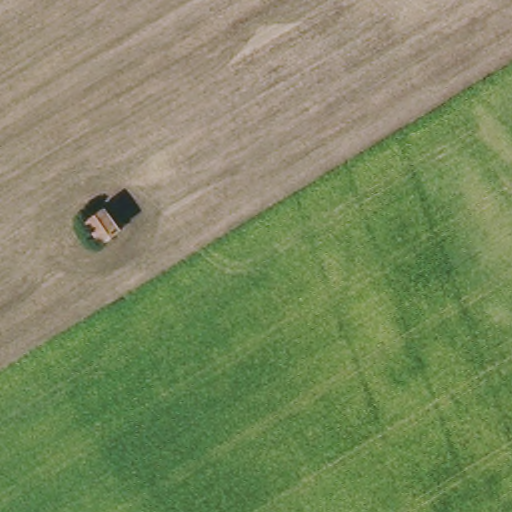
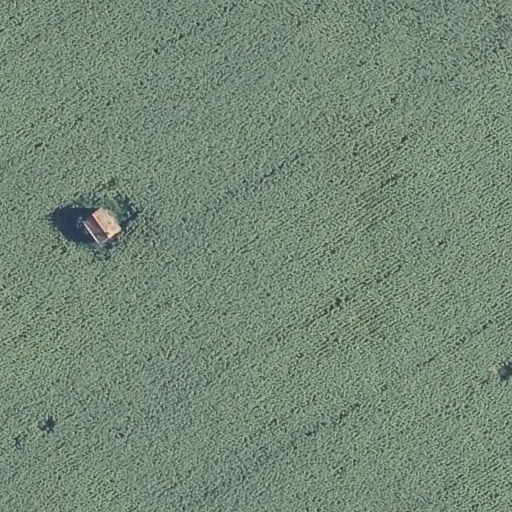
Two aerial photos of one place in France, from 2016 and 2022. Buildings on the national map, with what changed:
unchanged [(94,207),(110,229),(90,242),(75,221),(94,207)]

